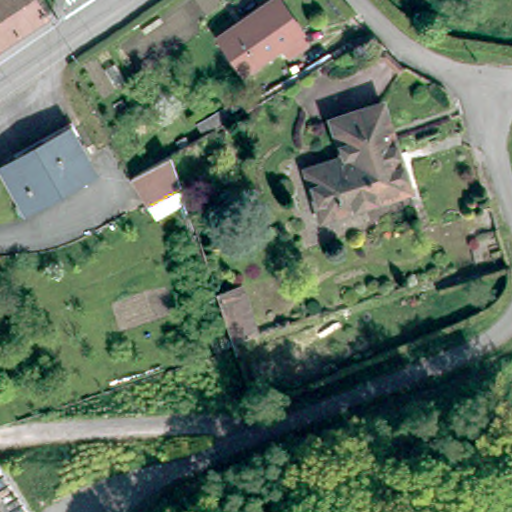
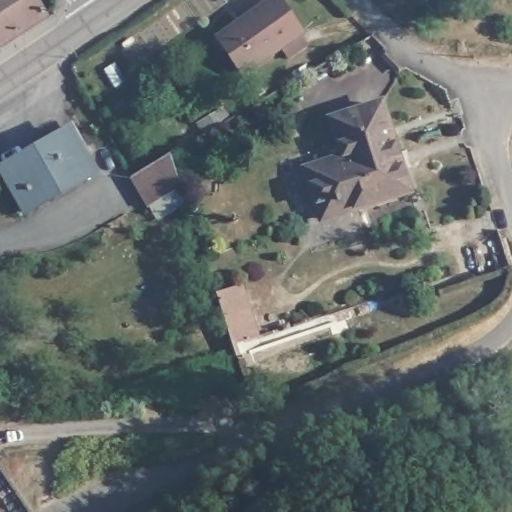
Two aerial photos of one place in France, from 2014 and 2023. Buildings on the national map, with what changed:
unchanged [(47,21),(0,51),(0,0),(34,0),(47,21)]
unchanged [(240,69),(237,71),(215,39),(270,0),(271,0),(295,31),(302,40),(285,52),(277,43),(253,60),(260,69),(246,78),(240,69)]
unchanged [(321,209),(305,163),(341,151),(329,114),(378,97),(407,184),(322,213),(321,209)]
unchanged [(201,134),(196,125),(220,110),(226,120),(201,134)]
unchanged [(91,173),(22,212),(0,173),(0,168),(66,129),(91,173)]
unchanged [(150,164),(167,154),(182,191),(150,204),(136,173),(150,164)]
unchanged [(261,329),(238,337),(220,290),(244,283),(261,329)]

